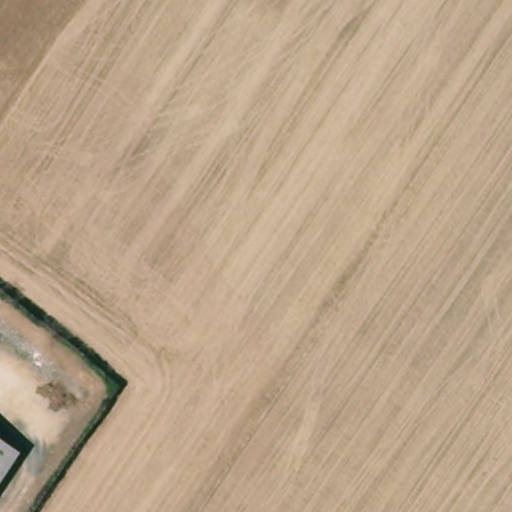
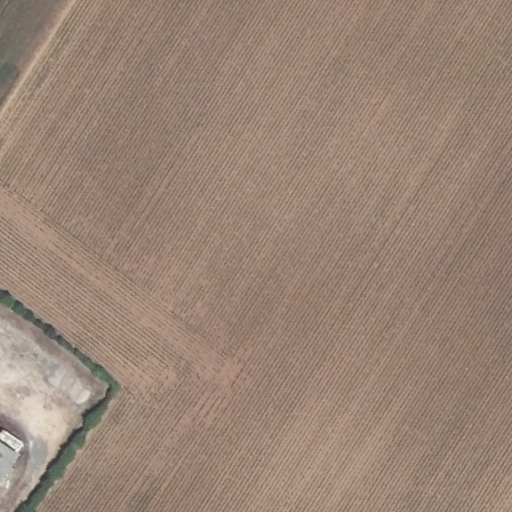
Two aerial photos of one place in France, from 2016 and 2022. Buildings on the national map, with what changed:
unchanged [(0,473),(0,441),(14,450),(0,473)]

